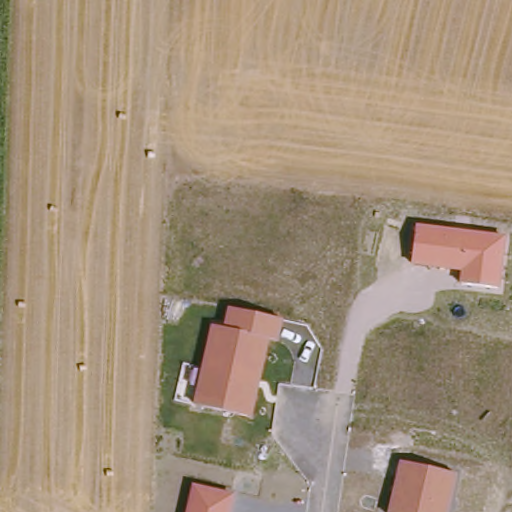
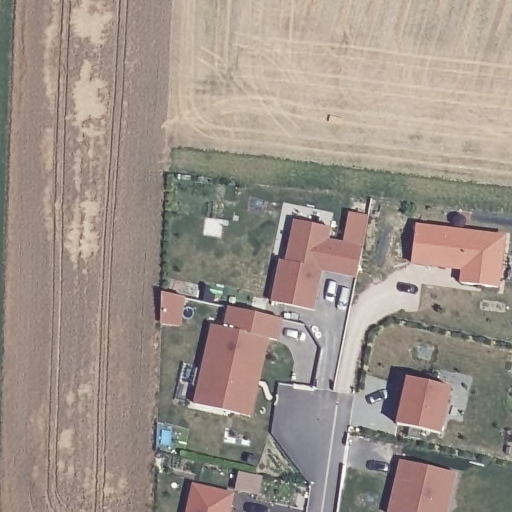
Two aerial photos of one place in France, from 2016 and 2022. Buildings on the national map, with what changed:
new [(281,261),(287,262),(295,221),(330,229),(327,241),(363,249),(357,277),(318,270),(315,285),(319,285),(315,307),(314,311),(273,302),(281,261)]
unchanged [(507,236),(500,288),(460,282),(462,270),(412,263),(417,224),(507,236)]
new [(163,292),(185,297),(182,312),(179,321),(162,317),(162,307),(163,292)]
unchanged [(280,341),(269,339),(252,415),(193,403),(211,325),(224,327),(228,308),(283,320),(280,341)]
new [(401,376),(451,387),(440,433),(397,424),(402,402),(397,394),(401,376)]
unchanged [(457,473),(448,512),(387,512),(400,460),(457,473)]
unchanged [(235,493),(231,512),(186,512),(192,483),(235,493)]

